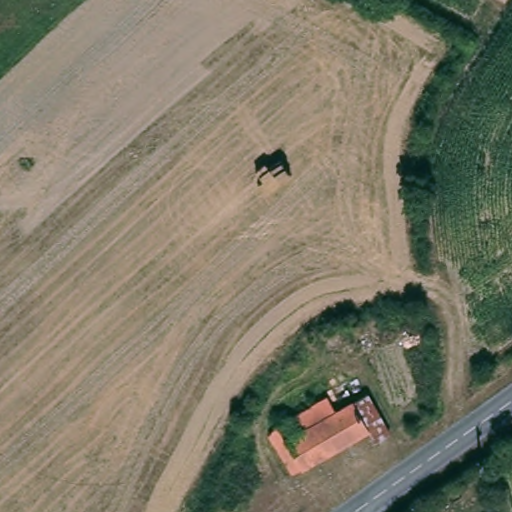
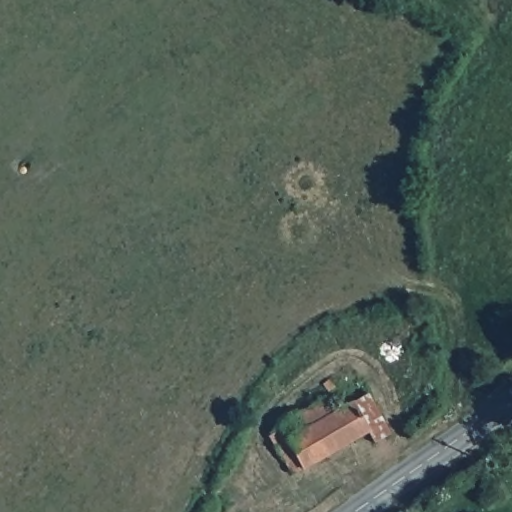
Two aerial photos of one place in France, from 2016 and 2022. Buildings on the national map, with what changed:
unchanged [(287,442),(282,431),(332,406),(339,419),(355,412),(359,416),(373,410),(387,437),(362,449),(357,440),(288,473),(276,449),(287,442)]

